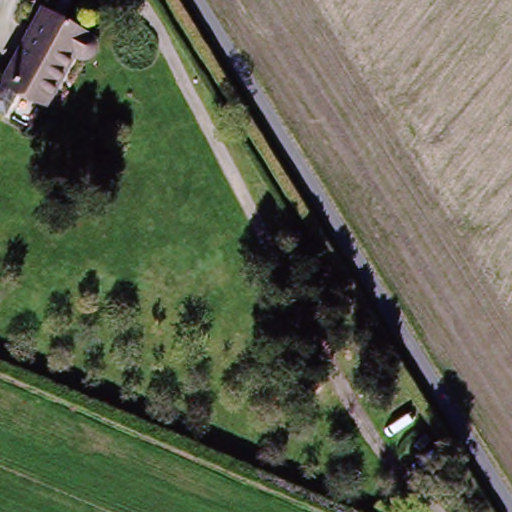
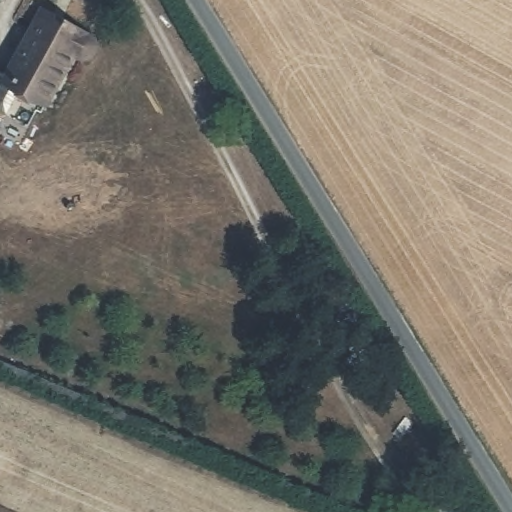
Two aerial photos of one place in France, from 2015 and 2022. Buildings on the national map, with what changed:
unchanged [(45,106),(11,89),(1,108),(0,108),(0,73),(30,14),(49,24),(54,14),(84,29),(86,46),(77,54),(72,52),(45,106)]

